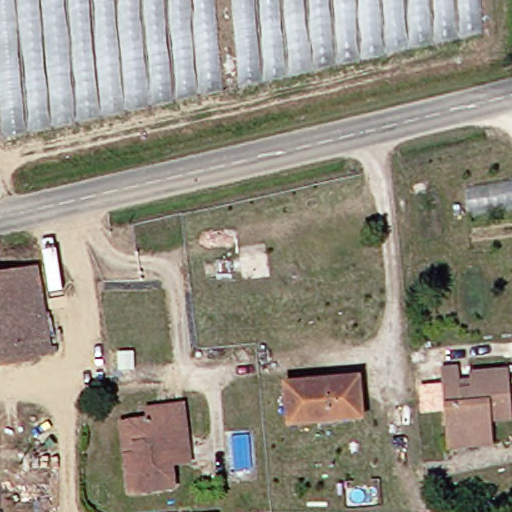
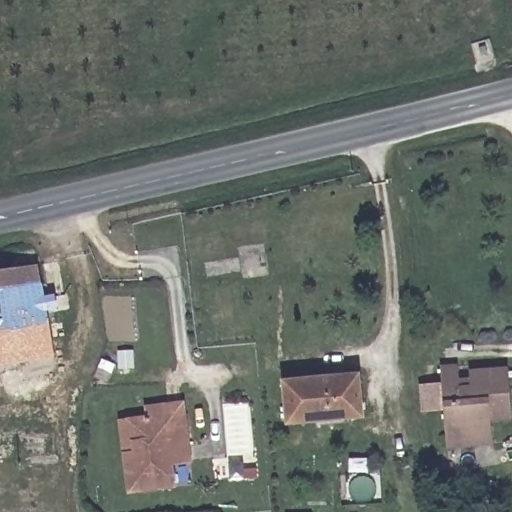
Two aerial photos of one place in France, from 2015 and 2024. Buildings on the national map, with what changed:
demolished [(0,0),(220,0),(227,90),(9,137),(0,44),(0,0)]
demolished [(238,0),(483,0),(486,36),(246,86),(238,0)]
demolished [(266,276),(236,279),(234,254),(264,251),(266,276)]
unchanged [(0,367),(0,275),(41,268),(56,359),(0,367)]
unchanged [(457,450),(457,442),(450,372),(468,370),(469,382),(482,381),(481,376),(512,374),(512,420),(502,421),(505,446),(457,450)]
unchanged [(368,378),(372,417),(297,424),(293,385),(368,378)]
unchanged [(178,489),(134,491),(131,454),(127,417),(135,416),(156,414),(155,405),(172,404),(192,403),(196,451),(196,462),(177,464),(178,489)]

